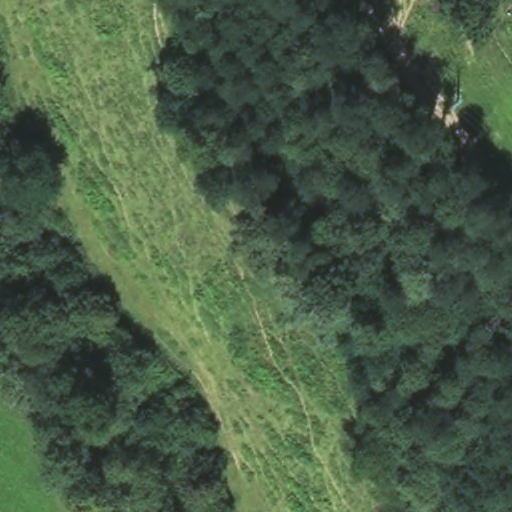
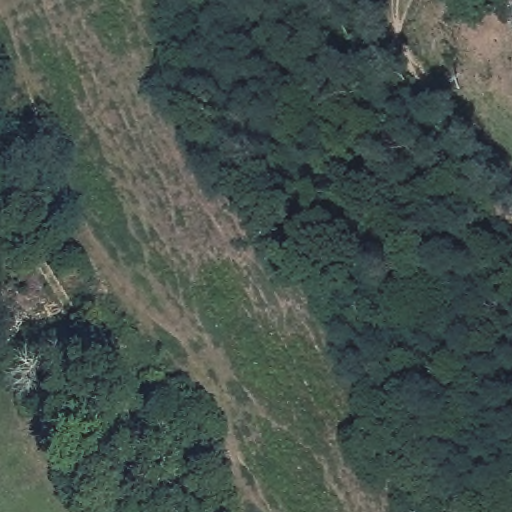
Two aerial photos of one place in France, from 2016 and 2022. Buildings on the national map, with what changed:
[]

